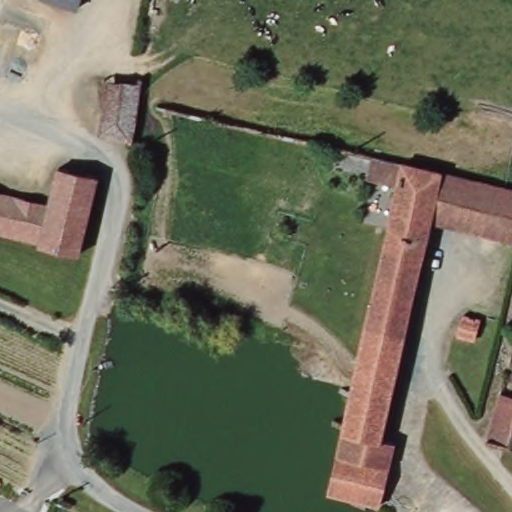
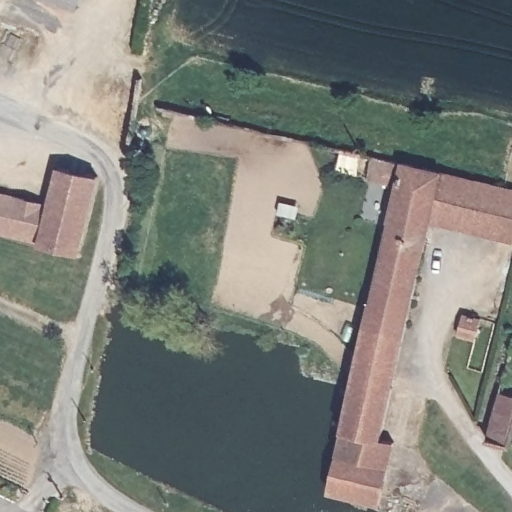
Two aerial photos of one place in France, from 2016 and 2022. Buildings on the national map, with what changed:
unchanged [(64,0),(87,0),(85,7),(64,0)]
unchanged [(374,507),(371,506),(369,505),(367,510),(327,491),(327,490),(353,383),(354,382),(377,285),(378,280),(402,184),(363,175),(340,170),(344,150),(345,145),(432,166),(444,169),(512,186),(512,242),(435,224),(377,442),(393,447),(377,508),(374,507)]
unchanged [(40,245),(41,241),(0,232),(0,193),(48,204),(58,167),(73,170),(80,172),(99,176),(79,254),(40,245)]
unchanged [(487,329),(482,350),(467,347),(471,325),(487,329)]
unchanged [(512,433),(509,443),(487,436),(498,392),(512,396),(512,433)]

